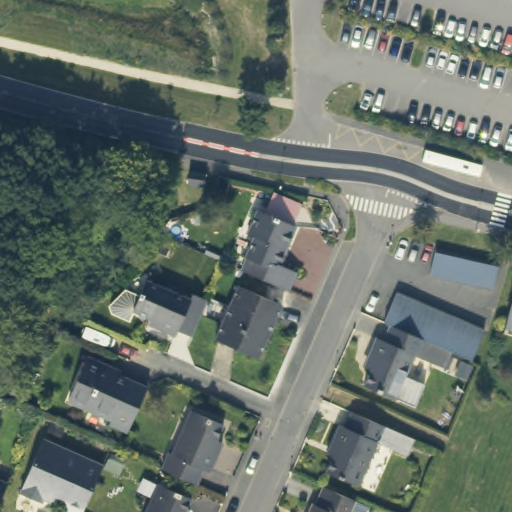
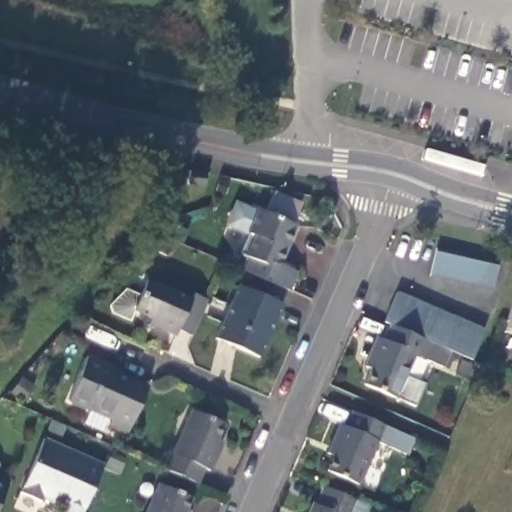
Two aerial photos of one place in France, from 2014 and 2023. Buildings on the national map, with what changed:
unchanged [(199,176),(197,188),(180,185),(182,181),(183,172),(185,173),(199,176)]
unchanged [(261,236),(250,232),(261,207),(295,221),(280,260),(299,268),(291,290),(246,271),(261,236)]
unchanged [(499,267),(493,294),(431,280),(437,253),(499,267)]
unchanged [(174,338),(151,328),(155,321),(131,310),(127,319),(110,311),(109,304),(124,289),(138,295),(145,279),(187,298),(190,289),(208,297),(192,337),(177,331),(174,338)]
unchanged [(255,355),(214,337),(237,282),(279,300),(255,355)]
unchanged [(399,295),(484,331),(474,359),(452,349),(436,342),(390,323),(387,322),(399,295)]
unchanged [(504,334),(512,310),(512,336),(504,334)]
unchanged [(371,369),(364,366),(377,335),(384,338),(390,323),(436,342),(452,349),(444,367),(414,354),(407,372),(426,380),(417,403),(366,382),(371,369)]
unchanged [(110,416),(111,413),(69,395),(85,356),(149,383),(130,425),(110,416)]
unchanged [(190,412),(222,424),(218,433),(225,436),(212,469),(204,466),(196,485),(165,472),(190,412)]
unchanged [(401,432),(394,448),(384,444),(384,446),(379,444),(362,486),(327,472),(333,457),(326,455),(338,425),(347,428),(354,413),(391,428),(401,432)]
unchanged [(37,500),(36,503),(19,497),(44,441),(101,465),(82,512),(58,512),(59,510),(37,500)]
unchanged [(354,512),(300,512),(313,481),(343,493),(359,500),(354,512)]
unchanged [(0,498),(0,482),(6,484),(0,498)]
unchanged [(191,496),(186,509),(187,512),(148,512),(161,483),(191,496)]

